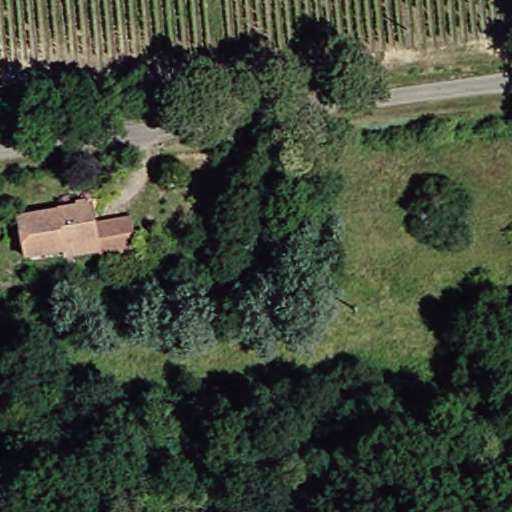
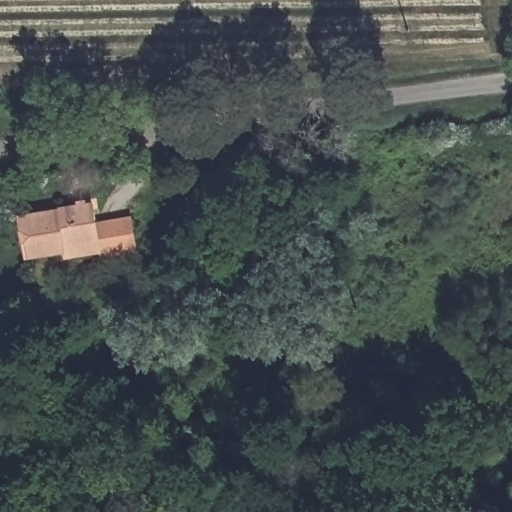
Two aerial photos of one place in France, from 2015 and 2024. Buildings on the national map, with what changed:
unchanged [(50,246),(12,251),(9,213),(84,203),(86,221),(120,218),(125,252),(92,257),(92,250),(51,254),(50,246)]

